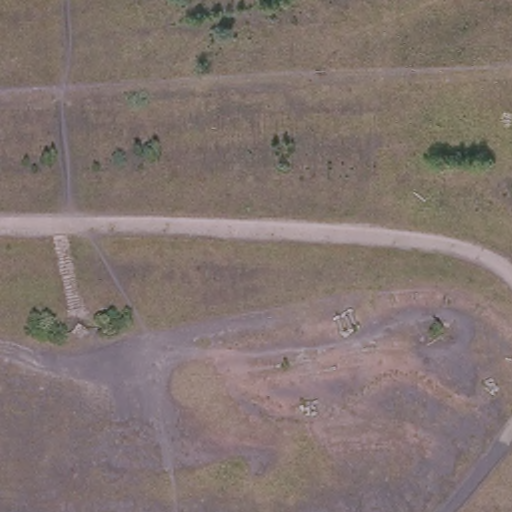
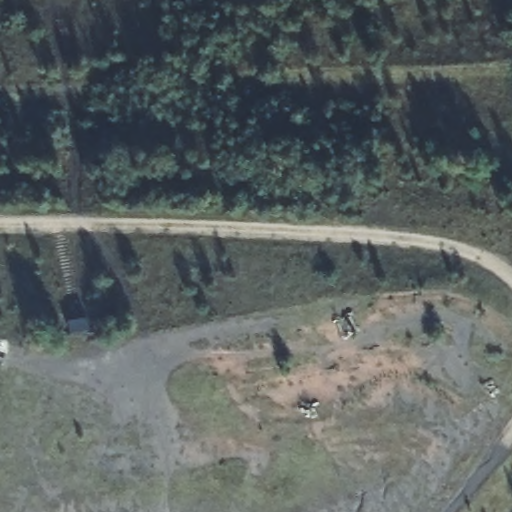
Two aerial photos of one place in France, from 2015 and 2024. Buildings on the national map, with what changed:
unchanged [(91,330),(68,333),(64,310),(88,307),(91,330)]

